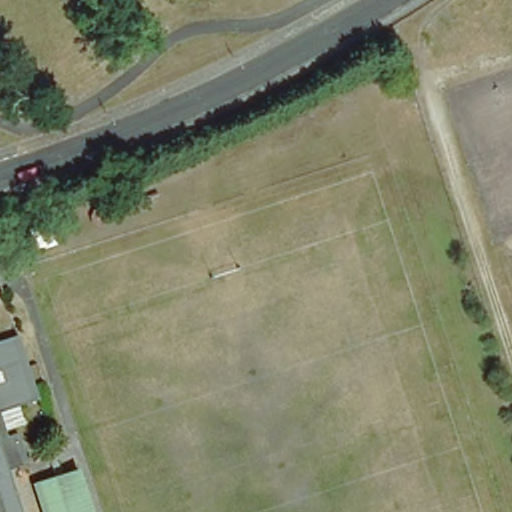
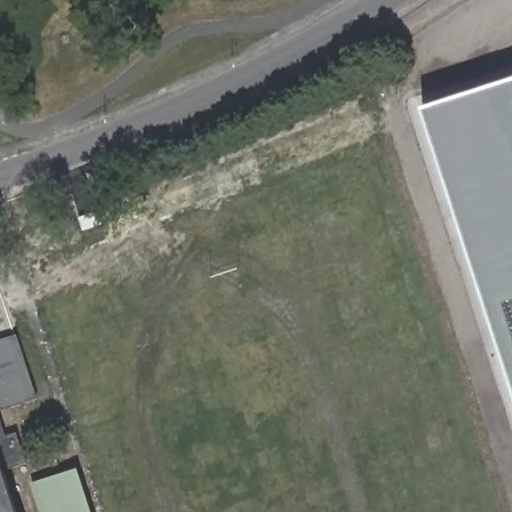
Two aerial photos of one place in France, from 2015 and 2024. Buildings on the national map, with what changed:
new [(512,87),(512,386),(421,117),(512,87)]
unchanged [(31,230),(51,222),(57,242),(38,250),(31,230)]
unchanged [(17,336),(29,368),(40,402),(1,413),(7,437),(17,433),(29,465),(6,472),(19,512),(0,512),(0,341),(17,336)]
unchanged [(88,512),(37,512),(27,483),(74,468),(88,512)]

